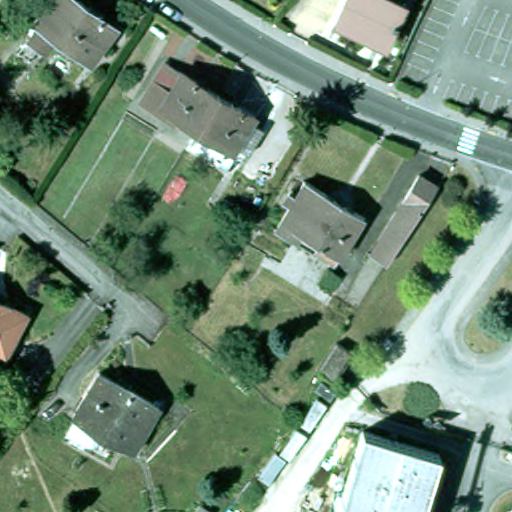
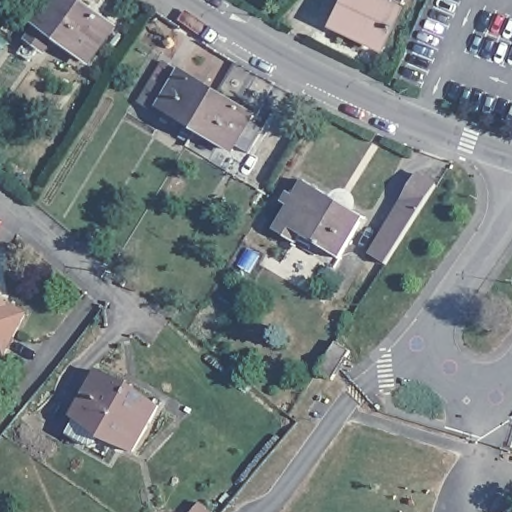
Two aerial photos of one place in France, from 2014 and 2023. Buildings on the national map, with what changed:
unchanged [(90,65),(57,42),(47,55),(30,43),(59,0),(74,0),(115,28),(90,65)]
unchanged [(349,0),(385,0),(394,5),(396,0),(408,0),(404,9),(407,10),(388,50),(337,26),(349,0)]
unchanged [(156,121),(139,110),(163,67),(215,98),(192,136),(171,123),(168,129),(156,121)]
unchanged [(246,159),(232,152),(230,157),(214,149),(205,163),(184,151),(192,136),(215,98),(251,120),(247,126),(260,134),(246,159)]
unchanged [(438,189),(388,269),(370,258),(385,232),(420,178),(438,189)]
unchanged [(330,270),(272,235),(302,185),(360,220),(330,270)]
unchanged [(0,304),(27,318),(5,356),(0,353),(0,304)]
unchanged [(319,377),(337,348),(353,359),(334,387),(319,377)]
unchanged [(160,406),(139,453),(107,437),(102,448),(93,447),(73,439),(81,423),(77,422),(100,374),(160,406)]
demolished [(437,457),(409,491),(392,512),(342,512),(365,436),(437,457)]
demolished [(437,457),(443,459),(426,512),(392,512),(409,491),(437,457)]

